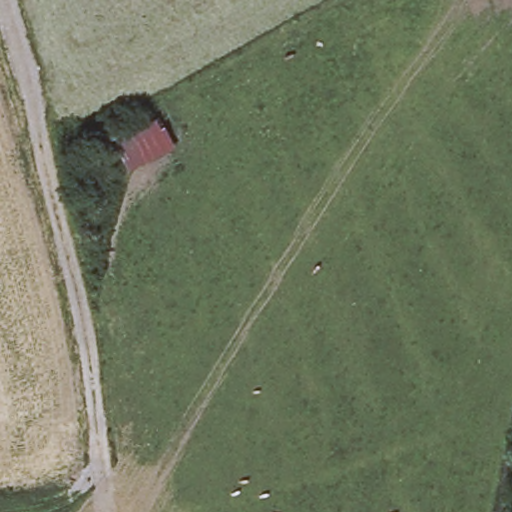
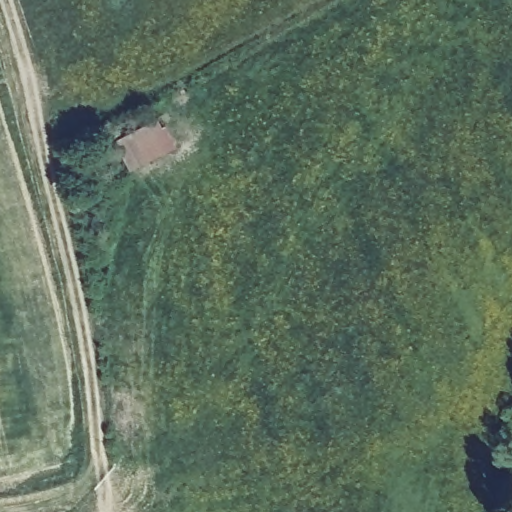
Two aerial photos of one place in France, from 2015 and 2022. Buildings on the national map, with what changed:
unchanged [(112,137),(161,112),(176,145),(129,169),(112,137)]

